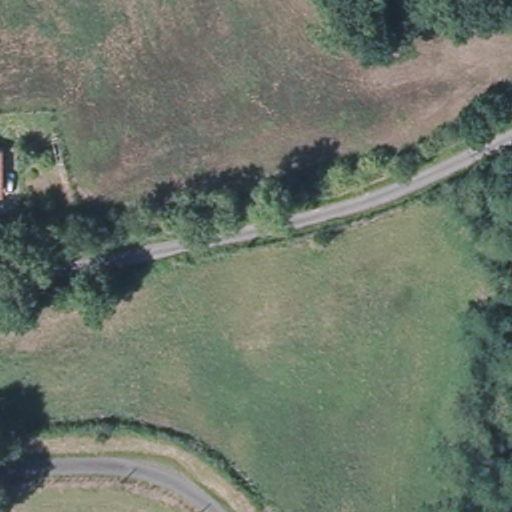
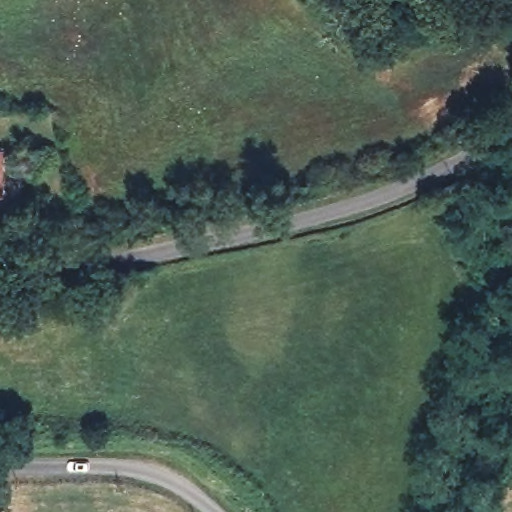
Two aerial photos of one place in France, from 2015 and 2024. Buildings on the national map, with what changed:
unchanged [(0,148),(3,148),(3,187),(0,186),(0,148)]

